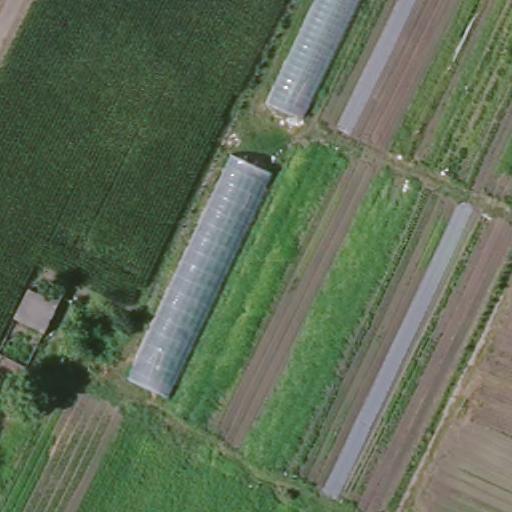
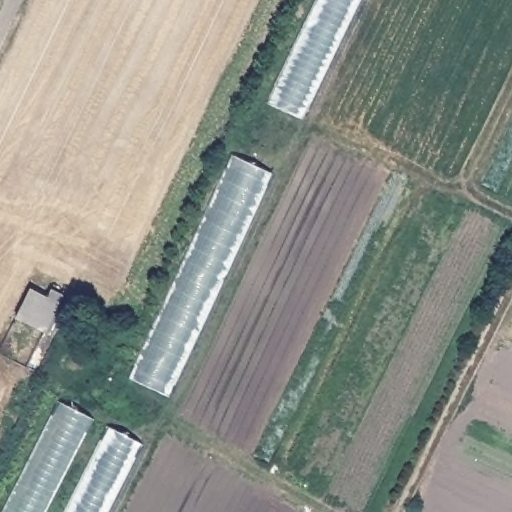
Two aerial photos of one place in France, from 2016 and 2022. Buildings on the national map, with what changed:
unchanged [(317,0),(356,0),(300,117),(268,102),(317,0)]
unchanged [(231,155),(270,173),(165,396),(130,377),(231,155)]
unchanged [(11,318),(25,288),(42,296),(46,287),(60,294),(42,333),(11,318)]
new [(93,417),(44,512),(1,512),(60,399),(93,417)]
new [(142,443),(107,512),(63,512),(108,425),(142,443)]

